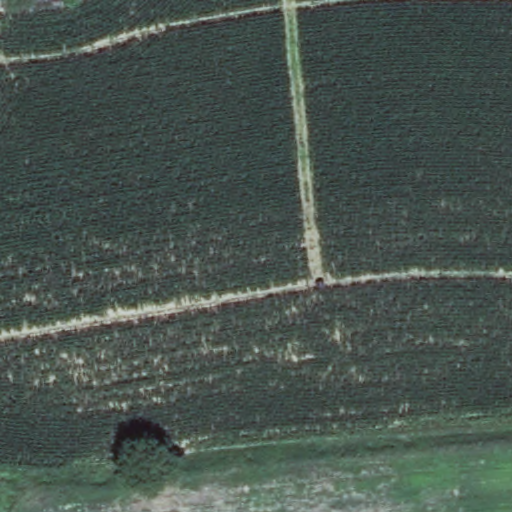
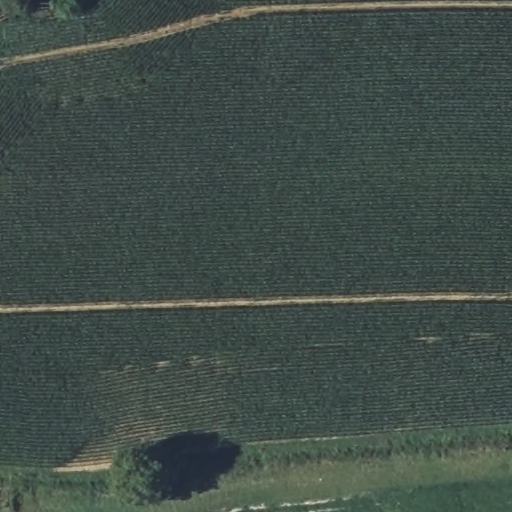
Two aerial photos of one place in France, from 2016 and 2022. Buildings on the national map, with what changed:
[]

